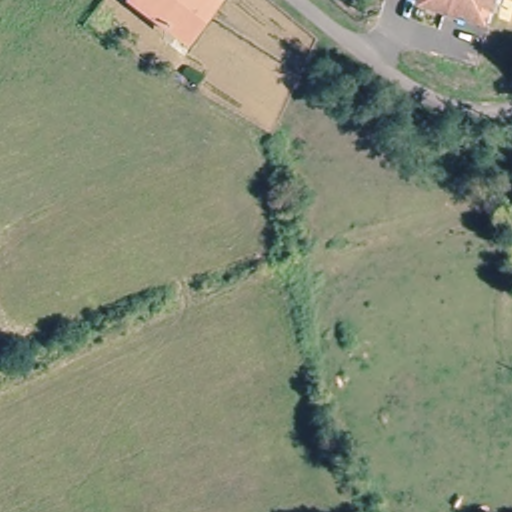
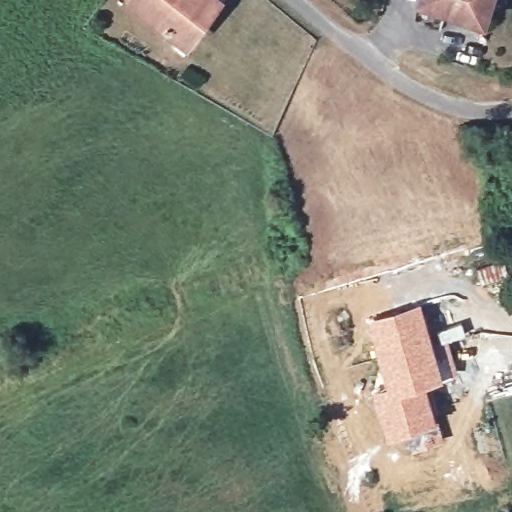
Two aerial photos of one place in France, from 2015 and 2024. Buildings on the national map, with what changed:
unchanged [(186,40),(136,0),(213,0),(215,1),(186,40)]
unchanged [(421,5),(423,0),(494,0),(487,23),(421,5)]
new [(412,449),(406,433),(387,439),(372,391),(385,384),(366,319),(422,303),(436,346),(447,342),(456,372),(427,384),(438,421),(444,438),(412,449)]

